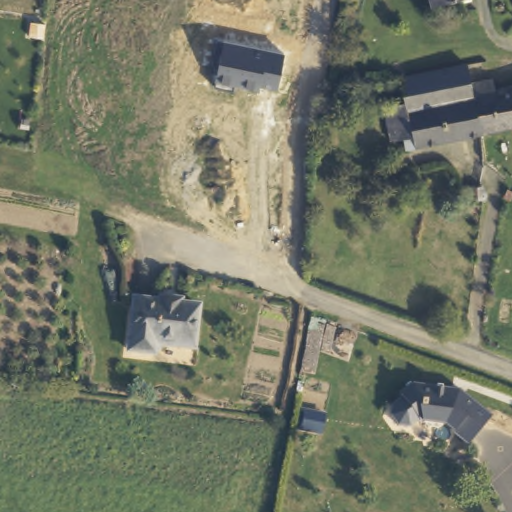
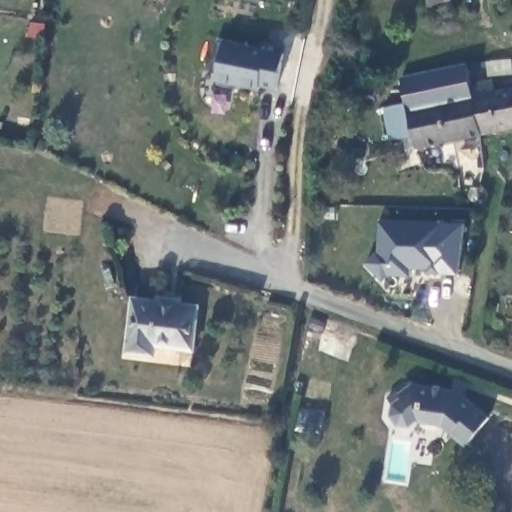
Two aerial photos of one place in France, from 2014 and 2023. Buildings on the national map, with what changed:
unchanged [(434,5),(432,0),(449,0),(434,5)]
unchanged [(279,90),(260,85),(260,90),(235,85),(234,92),(214,89),(216,73),(211,72),(218,40),(286,52),(279,90)]
unchanged [(404,137),(391,140),(385,106),(407,102),(401,78),(466,65),(470,84),(481,133),(417,146),(406,149),(404,137)]
unchanged [(495,90),(512,87),(512,127),(481,133),(470,84),(493,80),(495,90)]
unchanged [(483,186),(486,190),(488,195),(488,199),(484,204),(479,205),(473,203),(469,200),(469,197),(469,192),(473,187),(478,185),(483,186)]
new [(378,250),(380,220),(443,223),(440,273),(427,273),(427,268),(413,268),(412,276),(390,275),(384,282),(365,261),(378,250)]
unchanged [(182,299),(183,305),(199,305),(195,348),(157,344),(155,353),(128,350),(135,298),(160,301),(161,296),(182,299)]
unchanged [(462,390),(492,417),(469,440),(446,420),(425,420),(416,429),(405,429),(397,422),(396,411),(402,405),(400,401),(421,376),(462,390)]

